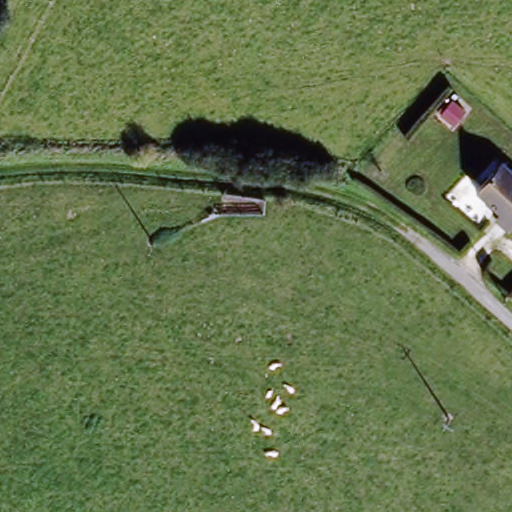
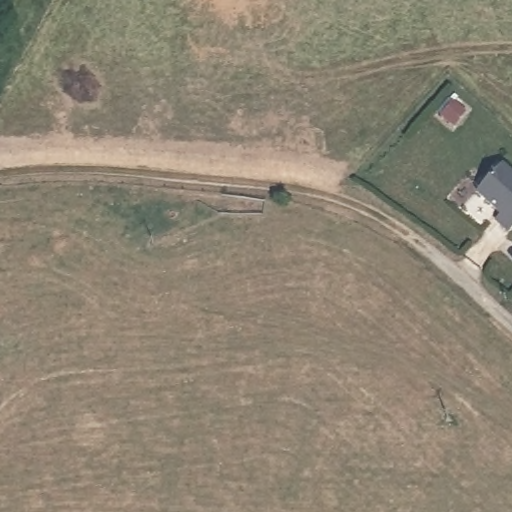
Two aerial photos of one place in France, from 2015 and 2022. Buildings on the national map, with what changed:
unchanged [(502,161),(512,169),(512,227),(500,217),(505,212),(478,189),(502,161)]

